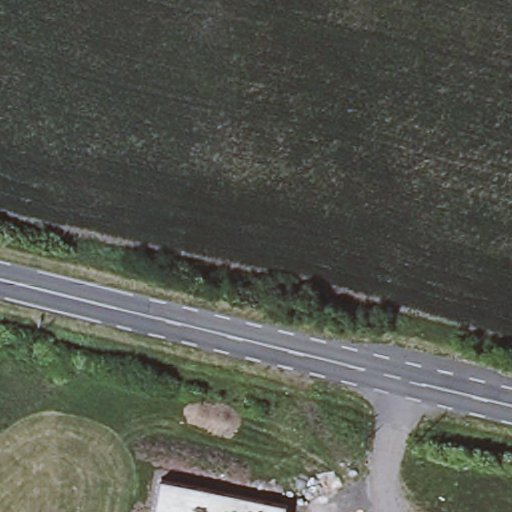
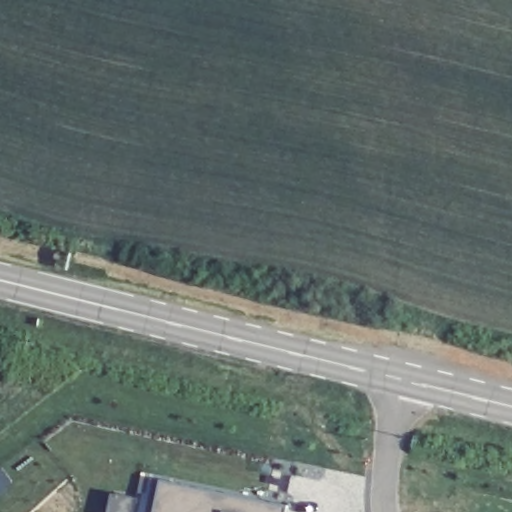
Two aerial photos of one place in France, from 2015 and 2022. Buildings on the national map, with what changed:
unchanged [(157,478),(285,503),(284,512),(151,512),(157,478)]

